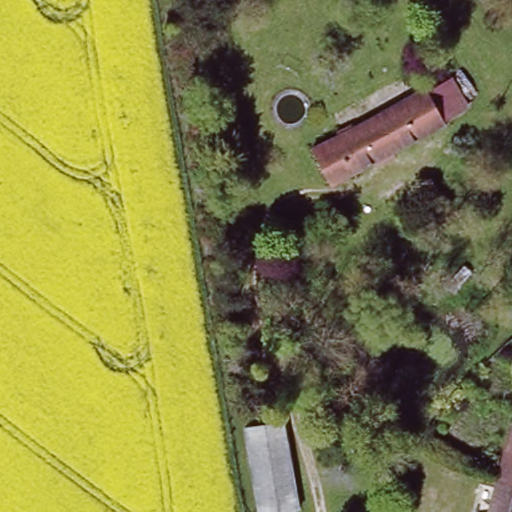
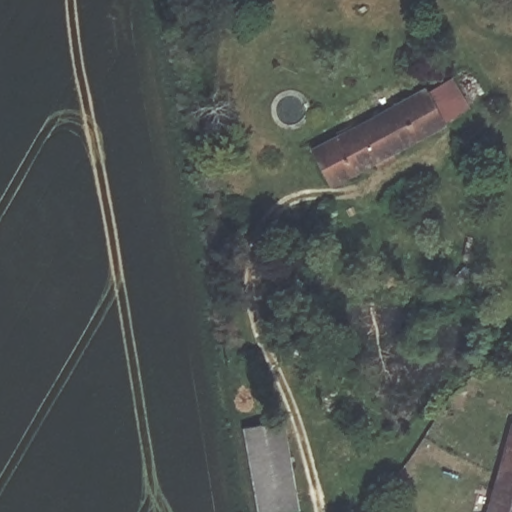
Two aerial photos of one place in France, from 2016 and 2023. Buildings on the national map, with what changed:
unchanged [(430,90),(452,79),(465,102),(443,113),(448,122),(333,185),(312,150),(427,84),(430,90)]
unchanged [(300,510),(288,512),(261,512),(246,427),(284,420),(300,510)]
unchanged [(512,512),(492,512),(512,442),(512,512)]

